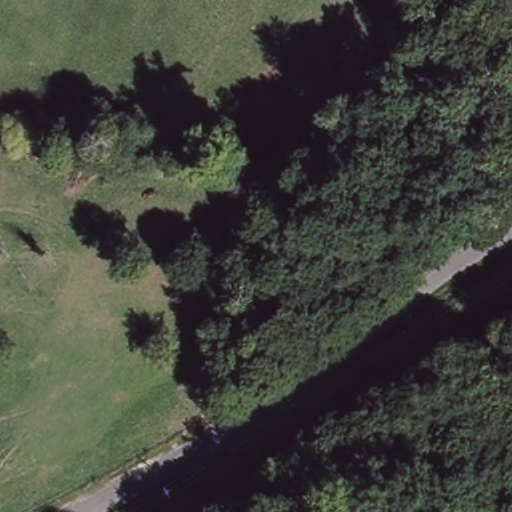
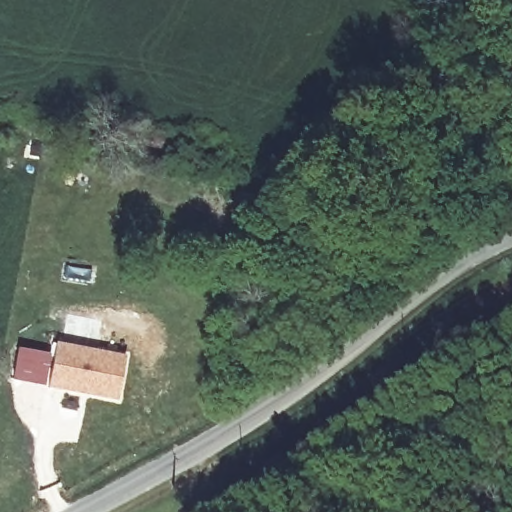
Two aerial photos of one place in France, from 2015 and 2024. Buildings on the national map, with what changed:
new [(126,354),(118,399),(48,387),(55,341),(126,354)]

